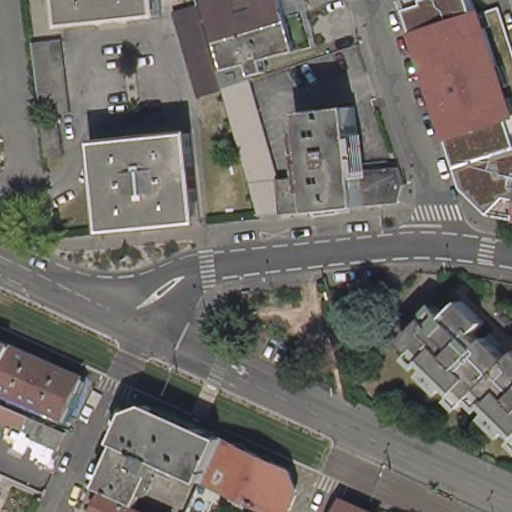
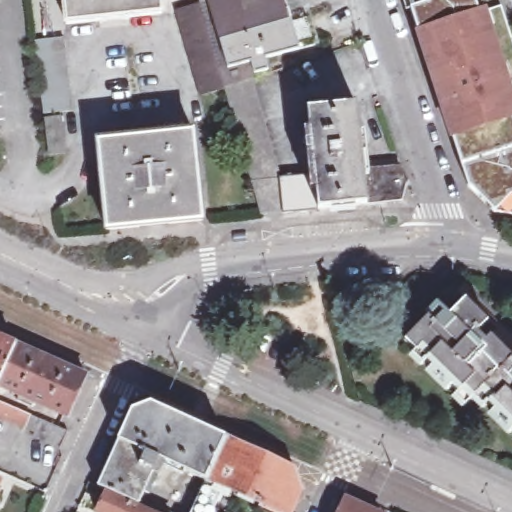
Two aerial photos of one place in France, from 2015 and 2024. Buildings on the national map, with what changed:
unchanged [(71,0),(165,0),(166,14),(73,24),(71,0)]
unchanged [(296,13),(311,9),(320,38),(305,42),(271,52),(275,69),(263,72),(263,74),(259,75),(286,176),(317,174),(322,209),(266,214),(257,185),(230,91),(206,97),(181,12),(205,4),(203,0),(292,0),(296,13)]
unchanged [(470,194),(467,191),(408,14),(407,9),(436,0),(470,0),(477,18),(500,11),(512,49),(512,221),(494,217),(475,199),(470,194)]
unchanged [(40,45),(70,42),(78,117),(49,120),(40,45)]
unchanged [(362,104),(367,169),(370,204),(322,209),(317,174),(312,109),(362,104)]
unchanged [(50,123),(67,122),(70,151),(71,157),(54,159),(50,123)]
unchanged [(103,140),(198,131),(207,220),(111,229),(103,140)]
unchanged [(405,165),(410,182),(405,200),(370,204),(367,169),(405,165)]
unchanged [(472,407),(410,344),(431,323),(441,332),(467,305),(490,327),(481,336),(488,344),(495,337),(512,355),(512,429),(480,398),(472,407)]
unchanged [(21,345),(65,365),(91,377),(72,416),(3,386),(2,388),(0,393),(0,336),(21,345)]
unchanged [(35,416),(28,430),(0,417),(0,401),(35,416)]
unchanged [(134,417),(161,406),(231,438),(291,466),(301,492),(292,512),(279,512),(231,490),(220,512),(198,512),(212,481),(167,460),(144,506),(102,486),(134,417)]
unchanged [(42,420),(63,430),(68,432),(60,449),(35,438),(42,420)]
unchanged [(7,480),(0,495),(0,477),(7,480)]
unchanged [(150,512),(105,512),(112,494),(150,512)]
unchanged [(382,512),(342,512),(350,497),(382,512)]

